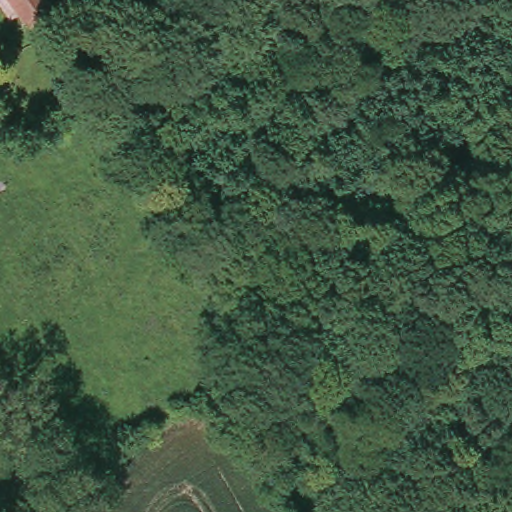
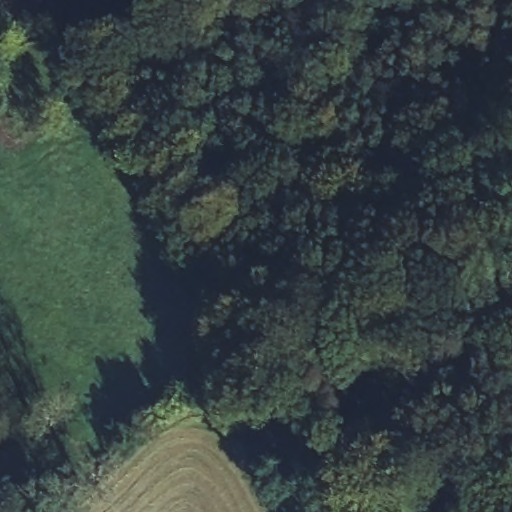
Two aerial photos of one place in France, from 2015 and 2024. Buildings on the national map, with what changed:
unchanged [(9,0),(55,0),(21,19),(9,0)]

